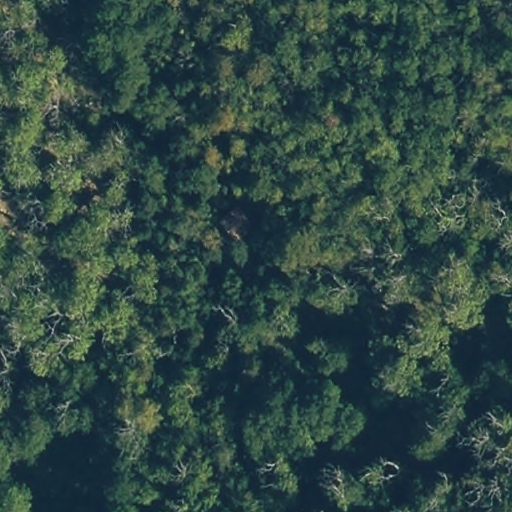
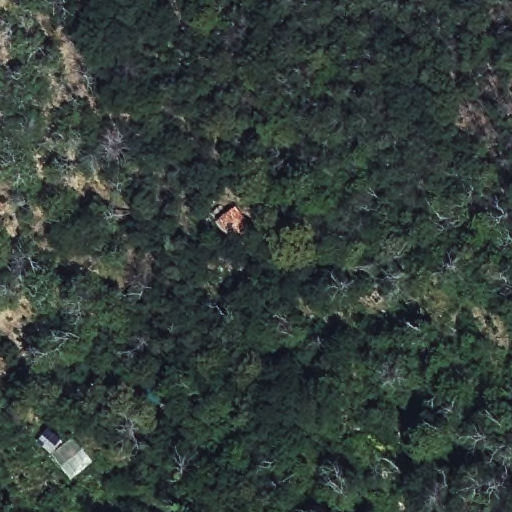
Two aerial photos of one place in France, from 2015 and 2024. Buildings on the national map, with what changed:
unchanged [(222,213),(237,231),(216,249),(201,231),(212,218),(222,213)]

